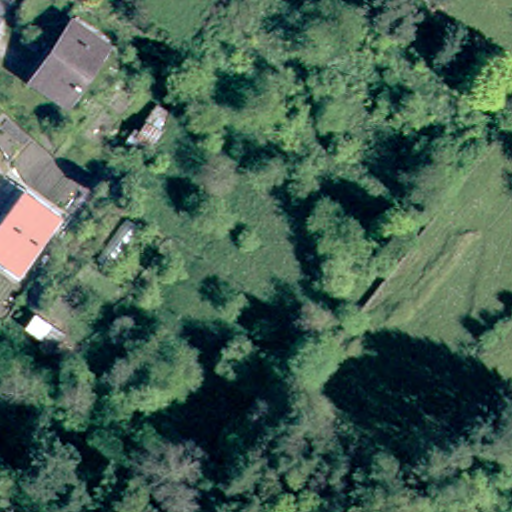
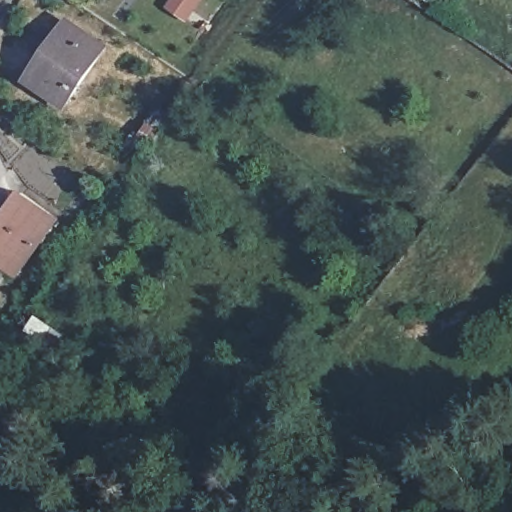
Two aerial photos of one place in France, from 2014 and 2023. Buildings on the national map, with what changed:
new [(203,0),(190,22),(169,8),(174,0),(203,0)]
unchanged [(77,25),(114,51),(74,108),(37,83),(77,25)]
unchanged [(142,140),(150,146),(139,161),(131,155),(142,140)]
unchanged [(67,223),(27,277),(0,257),(0,241),(32,197),(67,223)]
unchanged [(22,319),(46,335),(32,356),(21,348),(25,341),(12,332),(22,319)]

